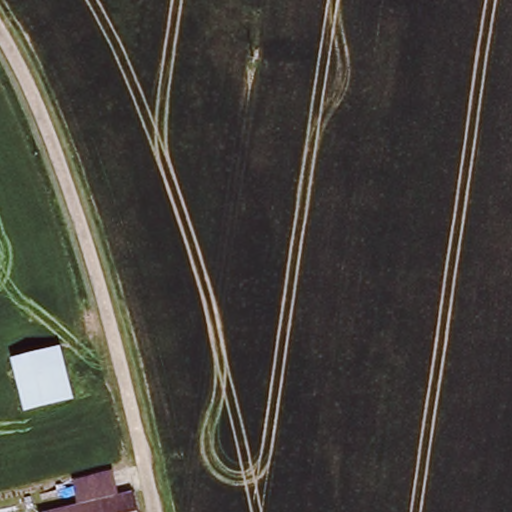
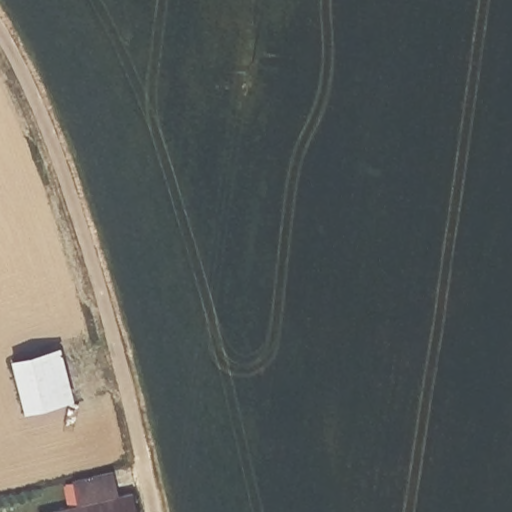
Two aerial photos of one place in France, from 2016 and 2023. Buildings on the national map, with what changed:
unchanged [(54,347),(67,397),(19,407),(9,358),(54,347)]
unchanged [(77,505),(73,479),(106,473),(117,496),(133,492),(137,512),(44,512),(77,505)]

